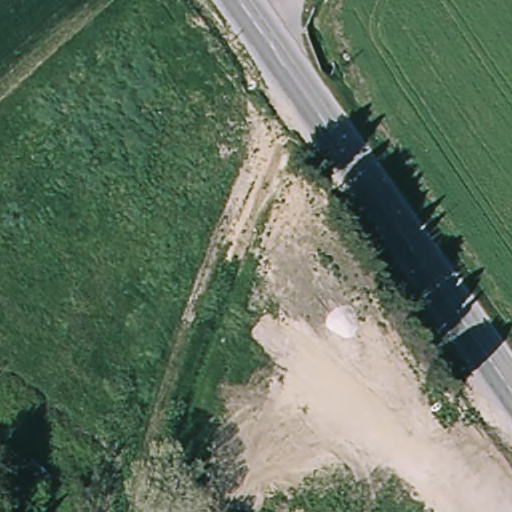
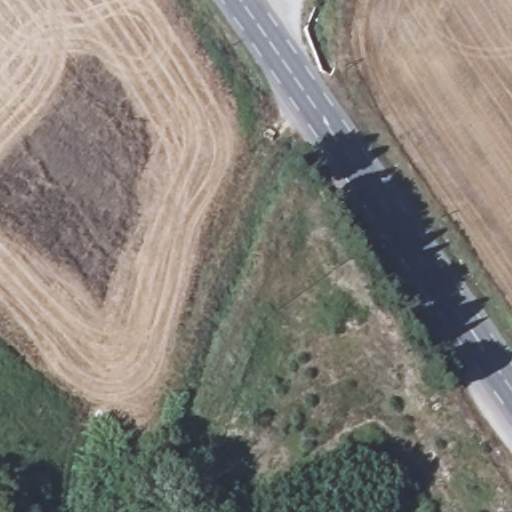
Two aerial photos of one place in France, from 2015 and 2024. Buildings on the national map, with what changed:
unchanged [(60,473),(45,497),(16,475),(33,453),(60,473)]

